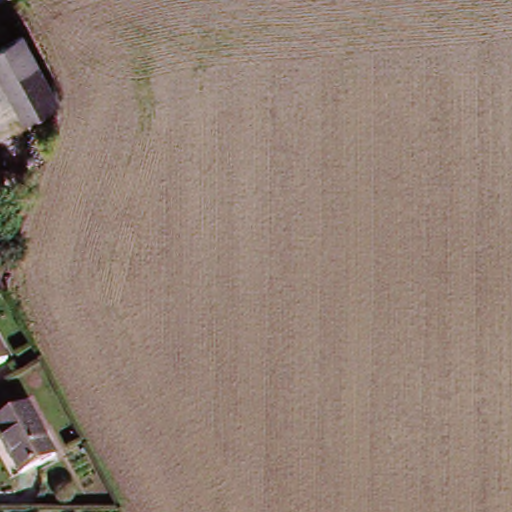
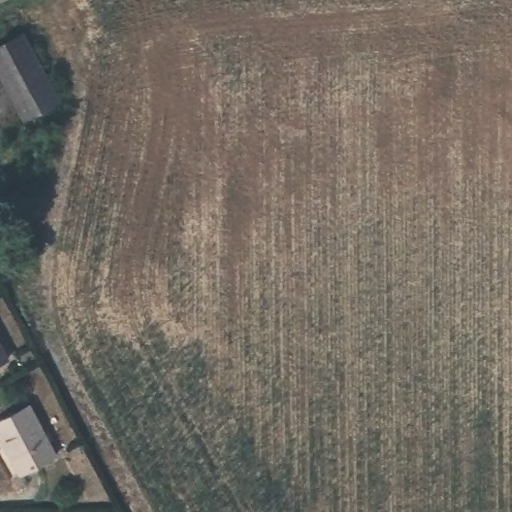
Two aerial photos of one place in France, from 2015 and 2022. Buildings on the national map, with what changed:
unchanged [(21,116),(0,76),(0,43),(21,32),(56,97),(21,116)]
unchanged [(7,360),(0,363),(0,346),(7,360)]
unchanged [(56,459),(21,478),(0,437),(0,430),(32,412),(56,459)]

